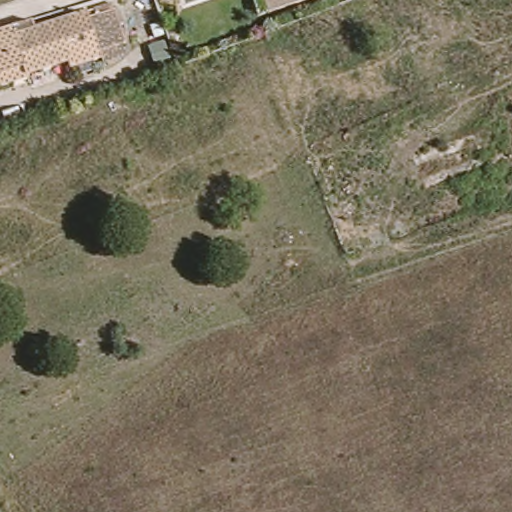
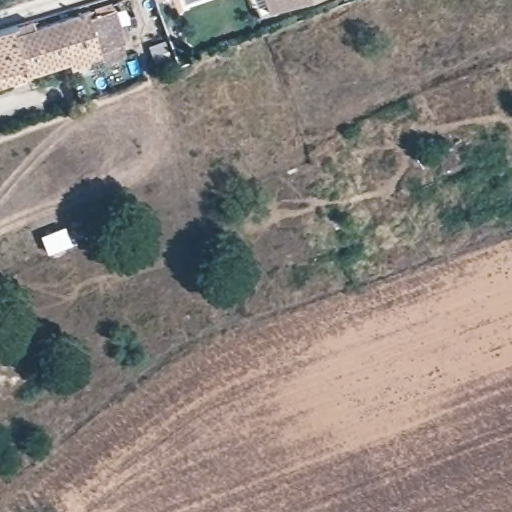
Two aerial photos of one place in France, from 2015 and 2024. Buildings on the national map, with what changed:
unchanged [(82,66),(79,60),(35,73),(30,61),(0,70),(0,20),(16,16),(20,26),(88,4),(101,0),(121,0),(122,4),(134,40),(121,45),(125,52),(106,58),(82,66)]
unchanged [(270,0),(314,0),(274,12),(270,0)]
unchanged [(35,73),(38,80),(0,92),(0,70),(30,61),(35,73)]

